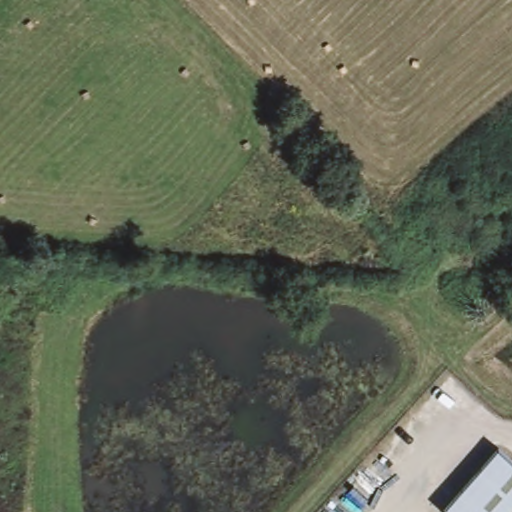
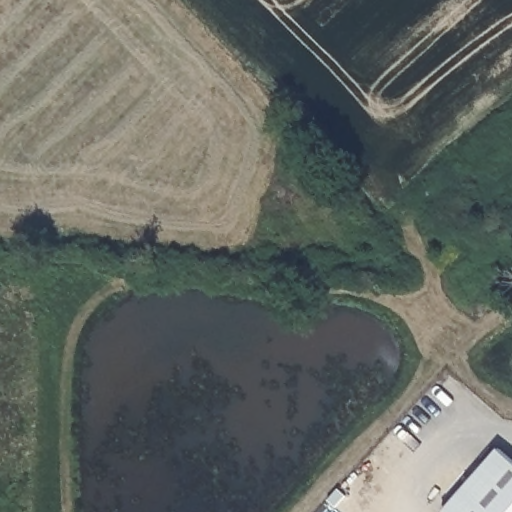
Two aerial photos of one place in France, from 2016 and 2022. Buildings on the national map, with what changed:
unchanged [(441,512),(497,447),(512,461),(512,512),(441,512)]

